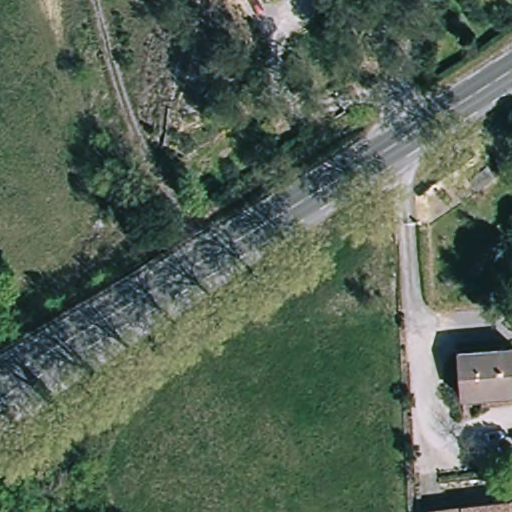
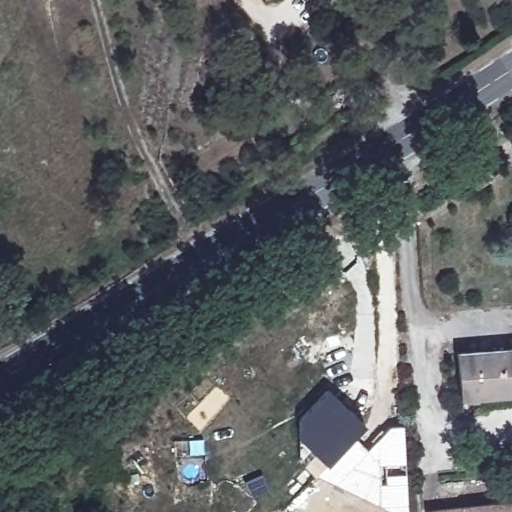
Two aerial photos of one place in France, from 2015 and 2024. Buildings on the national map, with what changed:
unchanged [(502,400),(459,403),(455,355),(512,350),(512,394),(502,395),(502,400)]
new [(326,389),(365,423),(326,464),(299,439),(297,419),(326,389)]
new [(403,428),(407,512),(392,512),(315,476),(300,459),(299,439),(326,464),(354,435),(367,449),(390,428),(403,428)]
unchanged [(431,509),(512,500),(512,512),(431,512),(431,509)]

